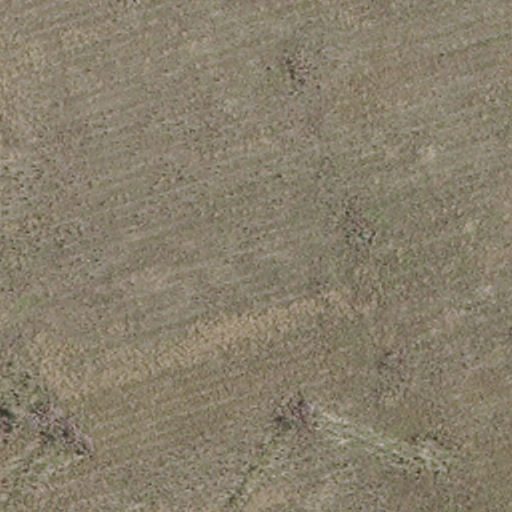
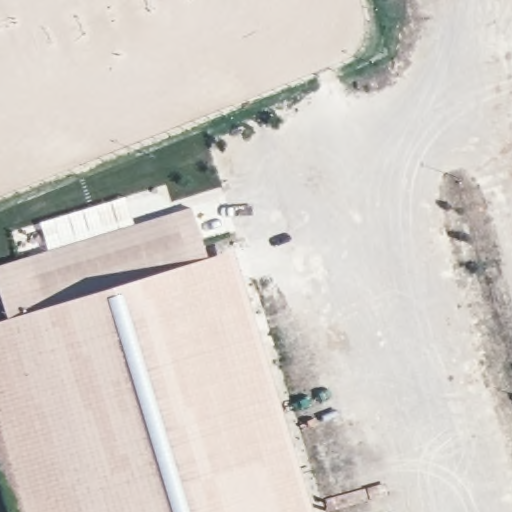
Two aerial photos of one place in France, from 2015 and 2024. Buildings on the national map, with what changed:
new [(47,251),(39,222),(125,197),(133,224),(190,208),(194,220),(0,286),(0,265),(47,251)]
new [(0,296),(0,286),(203,217),(222,272),(218,274),(298,512),(13,512),(0,473),(0,343),(14,338),(0,296)]

